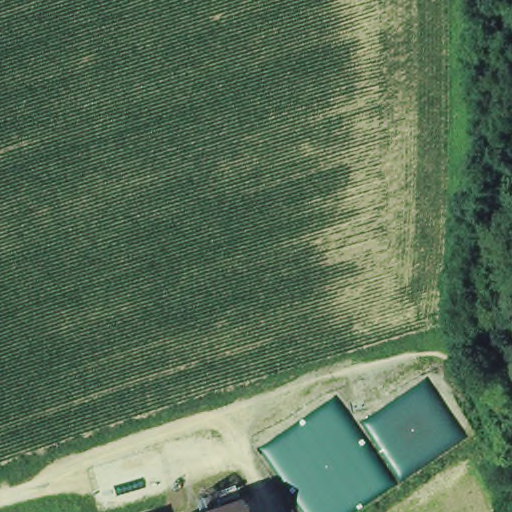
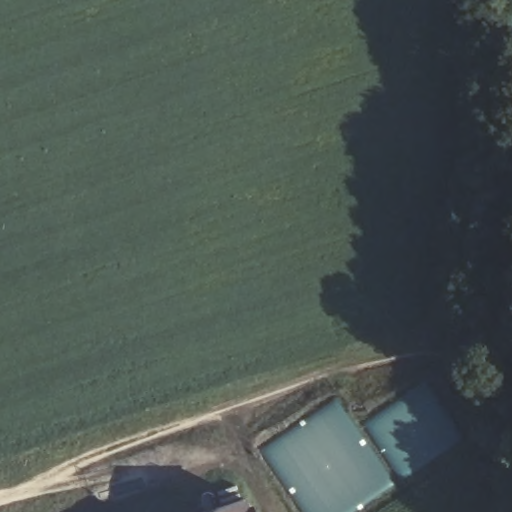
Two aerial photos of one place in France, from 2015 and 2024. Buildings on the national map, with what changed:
unchanged [(245,499),(249,512),(209,512),(245,499)]

